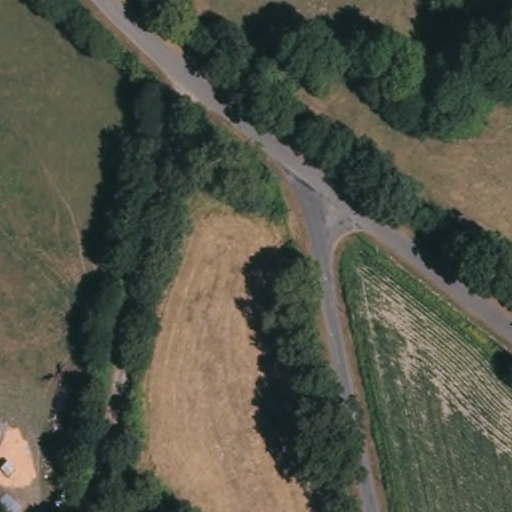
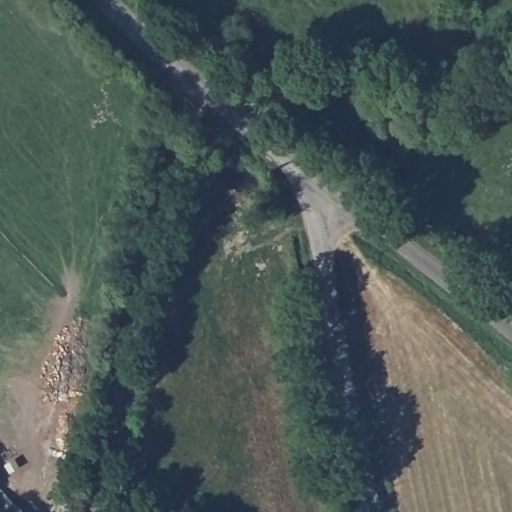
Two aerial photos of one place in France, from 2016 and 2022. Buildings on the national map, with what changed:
[]

